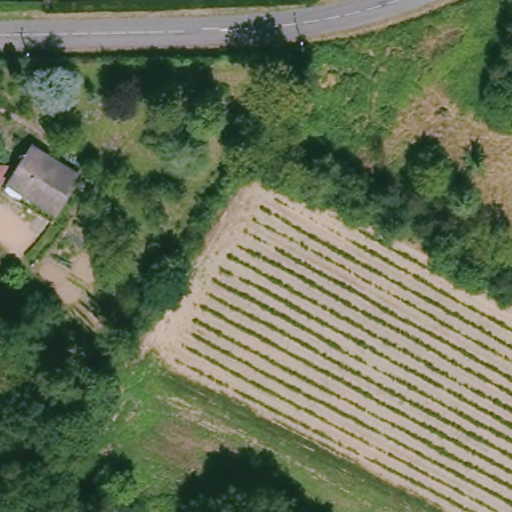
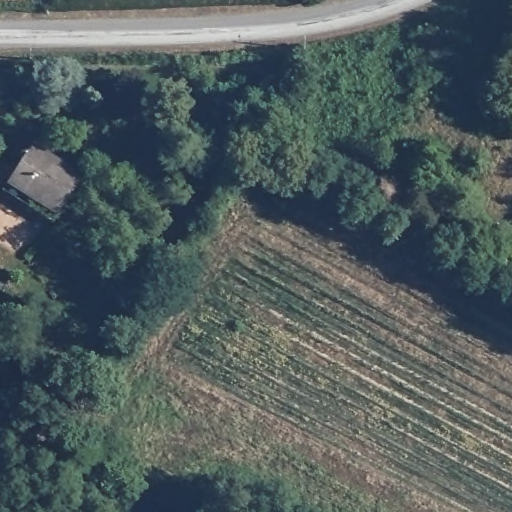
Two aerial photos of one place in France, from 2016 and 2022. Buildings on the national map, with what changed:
unchanged [(6,167),(26,140),(78,172),(51,215),(19,194),(15,202),(0,193),(0,191),(3,187),(0,186),(0,166),(6,167)]

